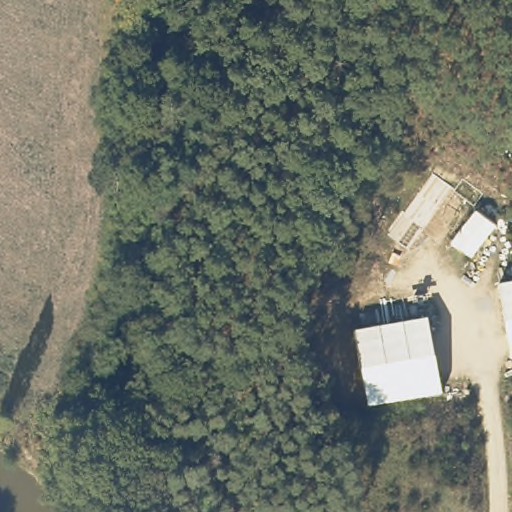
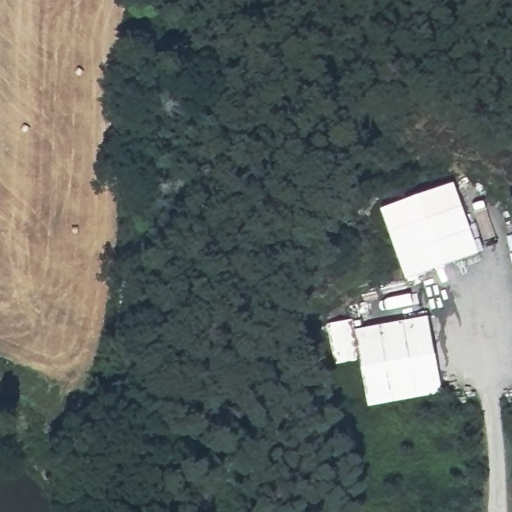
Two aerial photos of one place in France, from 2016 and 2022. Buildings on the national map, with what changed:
new [(453,182),(479,254),(405,282),(380,208),(453,182)]
unchanged [(427,319),(440,392),(371,407),(357,331),(427,319)]

